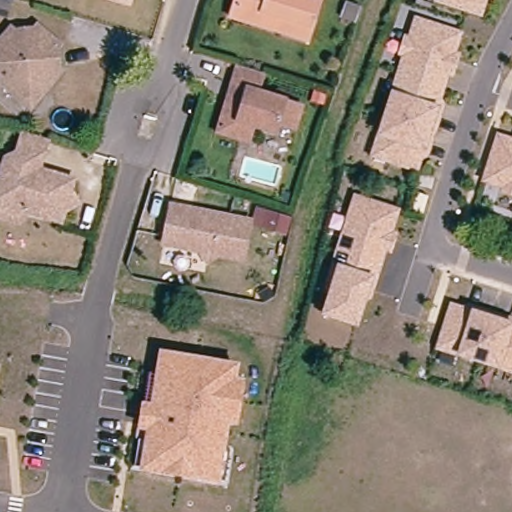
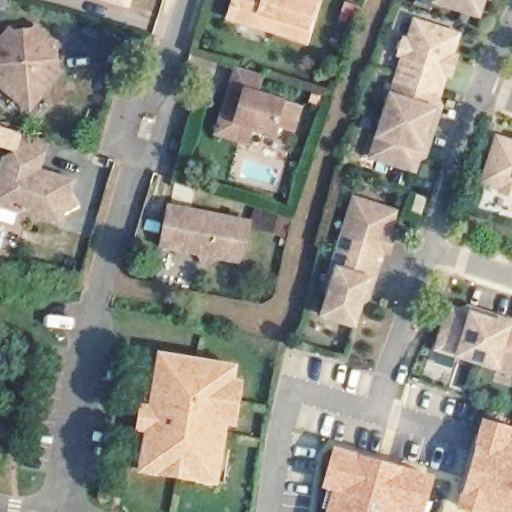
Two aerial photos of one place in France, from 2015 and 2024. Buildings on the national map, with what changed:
unchanged [(103,0),(132,0),(130,7),(103,0)]
unchanged [(306,42),(272,32),(276,20),(261,16),(258,27),(228,19),(234,0),(309,0),(317,2),(306,42)]
unchanged [(435,0),(495,0),(494,2),(490,1),(484,21),(433,5),(435,0)]
unchanged [(464,32),(459,52),(464,53),(454,82),(449,80),(443,101),(447,106),(431,157),(423,159),(419,175),(370,159),(377,135),(389,92),(401,59),(397,57),(403,34),(408,36),(414,15),(464,32)]
unchanged [(10,32),(13,35),(33,33),(36,30),(57,49),(54,52),(55,72),(58,75),(27,111),(0,86),(0,43),(10,32)]
unchanged [(215,136),(221,119),(236,69),(260,77),(255,96),(300,110),(292,132),(259,122),(257,130),(252,129),(247,146),(215,136)]
unchanged [(0,213),(0,200),(12,159),(20,161),(29,131),(54,138),(45,169),(80,179),(77,189),(85,202),(71,209),(68,220),(33,210),(29,222),(0,213)]
unchanged [(512,139),(512,200),(499,196),(501,188),(483,183),(496,135),(512,139)]
unchanged [(402,213),(395,236),(399,237),(392,256),(388,253),(372,305),(366,302),(357,331),(320,318),(328,293),(322,292),(353,196),(402,213)]
unchanged [(252,225),(241,263),(216,256),(205,262),(199,251),(163,240),(174,202),(252,225)]
unchanged [(461,306),(467,302),(512,316),(512,376),(435,353),(450,304),(461,306)]
unchanged [(239,362),(237,378),(245,379),(238,426),(228,425),(225,448),(231,449),(226,481),(220,480),(219,484),(139,471),(144,431),(137,430),(141,401),(150,402),(158,350),(239,362)]
new [(485,419),(512,427),(512,512),(471,512),(458,508),(485,419)]
new [(332,492),(325,487),(335,446),(436,476),(426,512),(326,512),(332,492)]

